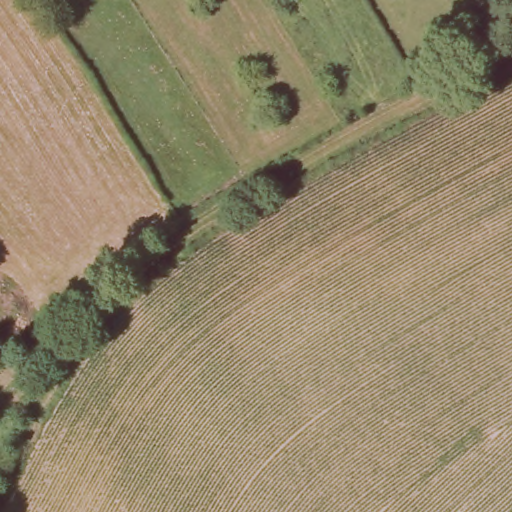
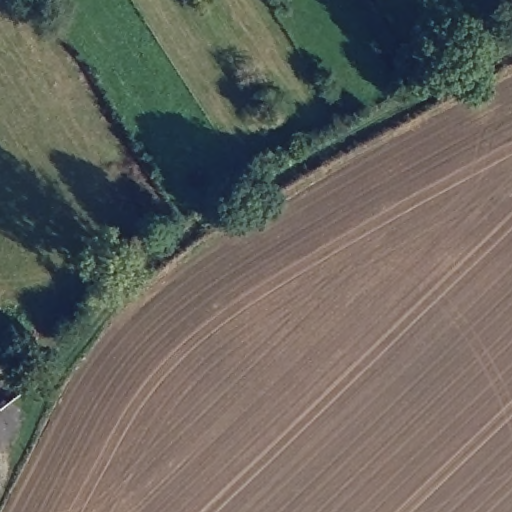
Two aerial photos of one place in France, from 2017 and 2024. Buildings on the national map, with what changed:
[]

